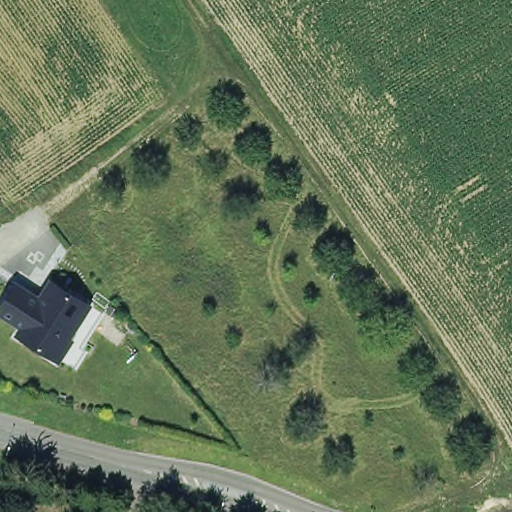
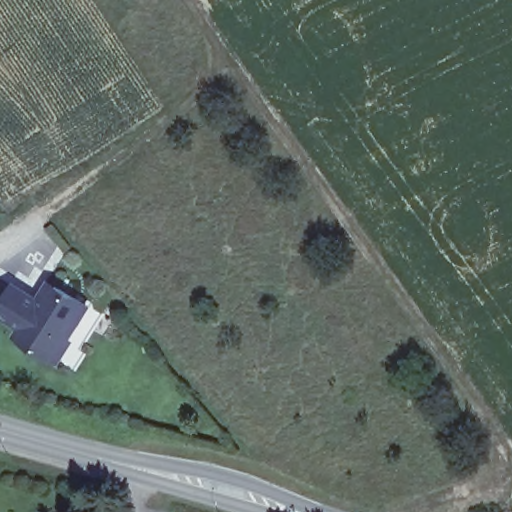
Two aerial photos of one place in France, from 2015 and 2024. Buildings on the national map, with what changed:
unchanged [(57,358),(46,351),(45,351),(17,333),(22,324),(0,310),(0,303),(14,282),(39,298),(43,292),(51,280),(56,283),(86,303),(65,337),(69,339),(57,358)]

